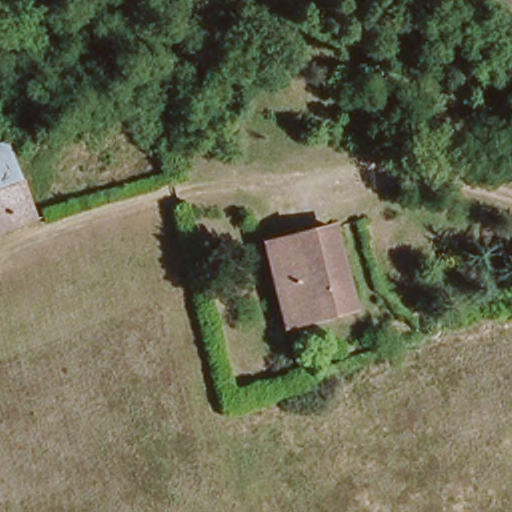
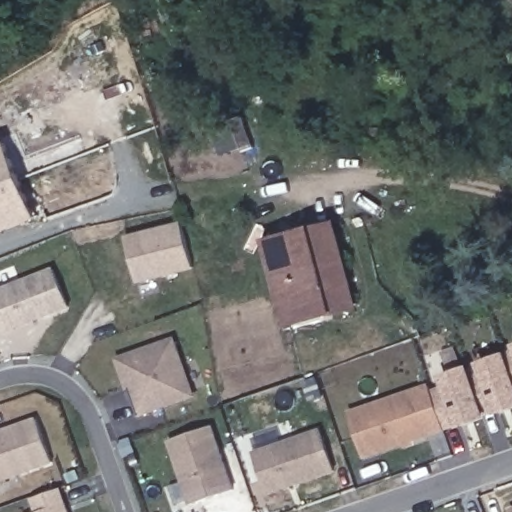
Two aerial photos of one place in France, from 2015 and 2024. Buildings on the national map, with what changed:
unchanged [(31,208),(0,221),(0,140),(2,139),(31,208)]
new [(178,224),(188,268),(133,282),(122,239),(178,224)]
unchanged [(313,313),(284,320),(265,239),(333,224),(347,283),(353,304),(313,313)]
new [(0,334),(0,289),(54,267),(70,308),(0,334)]
new [(127,392),(115,358),(176,337),(196,397),(139,417),(131,390),(127,392)]
new [(347,411),(427,383),(429,390),(440,386),(438,379),(465,369),(470,383),(483,379),(478,365),(507,354),(507,349),(512,348),(512,408),(365,460),(347,411)]
new [(37,420),(52,463),(0,483),(0,434),(37,420)]
new [(190,505),(168,440),(214,425),(236,490),(190,505)]
new [(337,471),(268,496),(253,452),(322,428),(337,471)]
new [(57,490),(65,512),(34,512),(30,500),(57,490)]
new [(512,507),(512,512),(511,512),(510,508),(512,507)]

